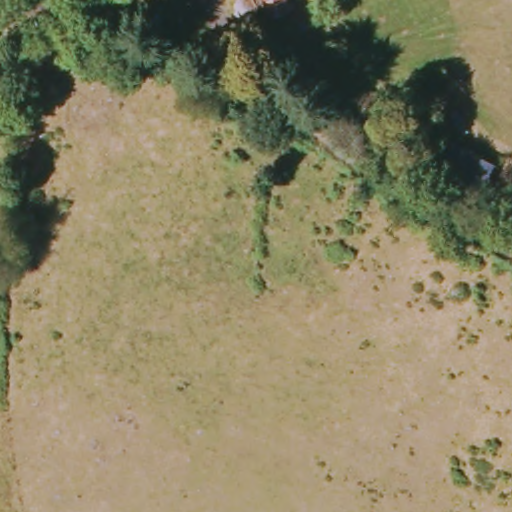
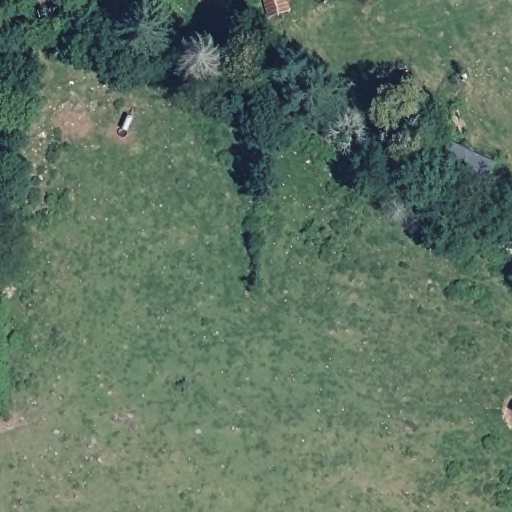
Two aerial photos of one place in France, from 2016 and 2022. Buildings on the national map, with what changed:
unchanged [(272,19),(267,0),(292,0),(296,14),(272,19)]
unchanged [(504,164),(489,199),(426,169),(440,136),(504,164)]

